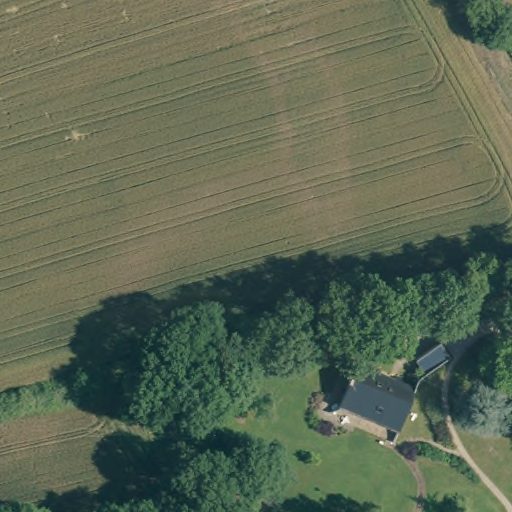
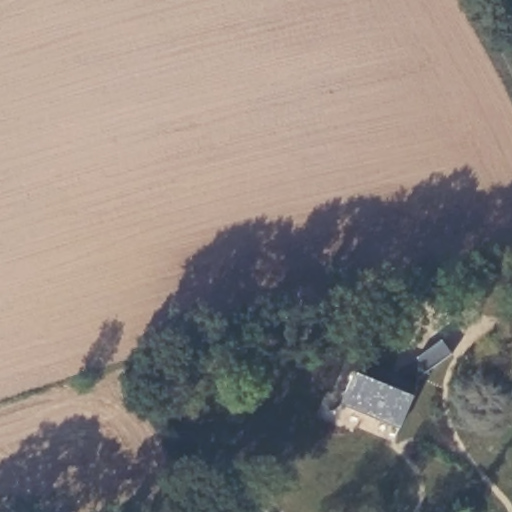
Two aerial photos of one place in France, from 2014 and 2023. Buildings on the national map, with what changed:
unchanged [(440,341),(450,355),(426,373),(415,358),(440,341)]
unchanged [(357,361),(417,386),(399,429),(340,404),(357,361)]

